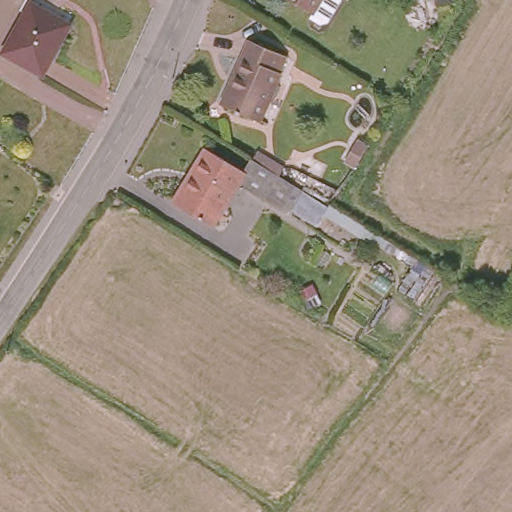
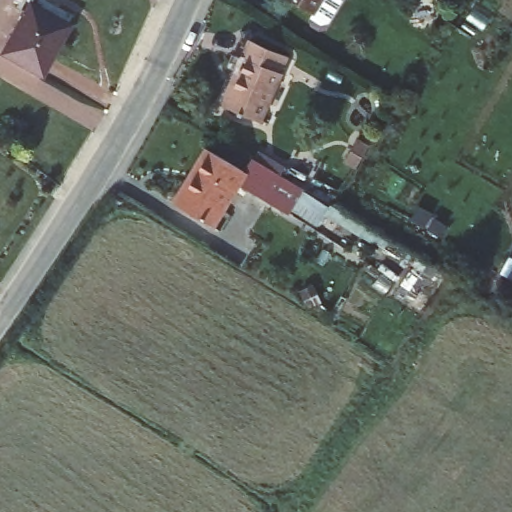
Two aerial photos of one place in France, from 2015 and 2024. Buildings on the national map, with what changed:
unchanged [(323,0),(311,17),(283,0),(323,0)]
unchanged [(69,24),(43,75),(3,53),(29,3),(69,24)]
unchanged [(284,58),(259,118),(223,103),(248,42),(284,58)]
unchanged [(264,204),(238,189),(212,230),(174,207),(209,153),(245,175),(254,162),(281,178),(264,204)]

